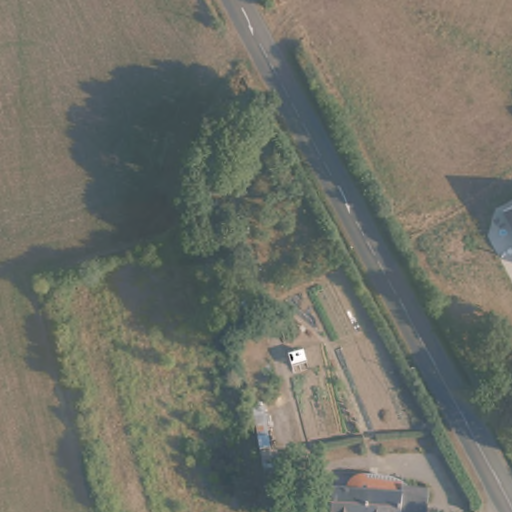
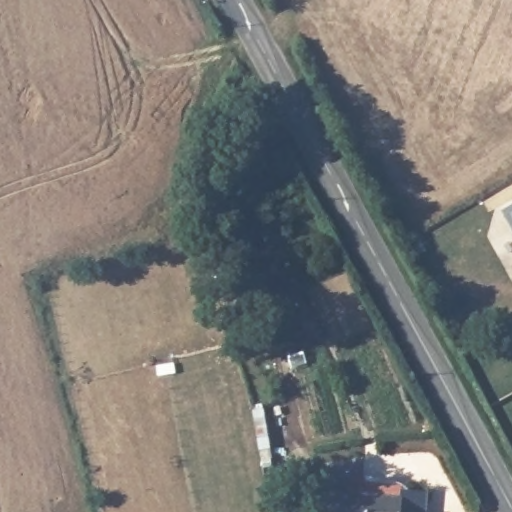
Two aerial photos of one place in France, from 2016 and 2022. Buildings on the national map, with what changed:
unchanged [(512,203),(512,228),(501,209),(512,203)]
unchanged [(395,497),(397,485),(415,488),(412,512),(377,512),(378,495),(395,497)]
unchanged [(347,491),(378,495),(377,512),(345,512),(347,491)]

